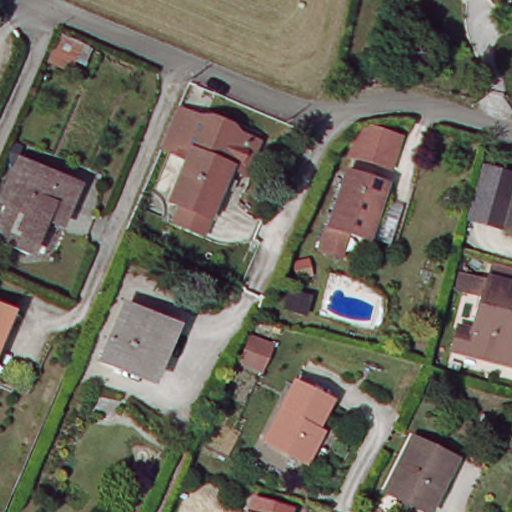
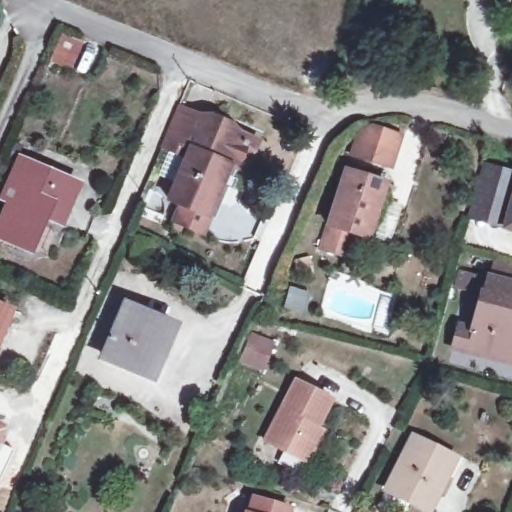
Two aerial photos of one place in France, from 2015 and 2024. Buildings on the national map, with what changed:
unchanged [(81,42),(70,67),(55,61),(66,36),(81,42)]
unchanged [(259,140),(247,168),(238,164),(222,200),(215,197),(208,213),(166,195),(186,152),(158,140),(173,103),(249,136),(259,140)]
unchanged [(359,132),(370,128),(400,137),(394,156),(390,169),(351,157),(355,144),(359,132)]
unchanged [(53,175),(54,173),(78,183),(61,223),(47,217),(33,250),(0,236),(0,234),(14,201),(6,197),(13,181),(22,161),(53,175)]
unchanged [(467,217),(473,198),(481,166),(512,175),(512,231),(501,227),(467,217)]
unchanged [(392,244),(371,237),(370,239),(349,233),(342,256),(321,249),(346,170),(389,183),(383,202),(404,209),(392,244)]
unchanged [(476,330),(487,292),(477,289),(481,273),(495,278),(512,283),(512,365),(474,352),(457,347),(463,326),(476,330)]
unchanged [(311,294),(306,312),(287,308),(292,290),(311,294)]
unchanged [(13,310),(0,342),(0,304),(13,310)]
unchanged [(105,358),(128,306),(172,325),(153,372),(125,361),(124,366),(105,358)]
unchanged [(274,347),(264,371),(245,363),(256,339),(274,347)]
unchanged [(333,399),(318,429),(324,433),(309,462),(267,441),(298,381),(333,399)]
new [(8,428),(1,443),(13,448),(0,478),(0,424),(8,428)]
unchanged [(458,459),(431,512),(388,490),(415,438),(458,459)]
unchanged [(296,508),(294,512),(245,512),(249,496),(296,508)]

